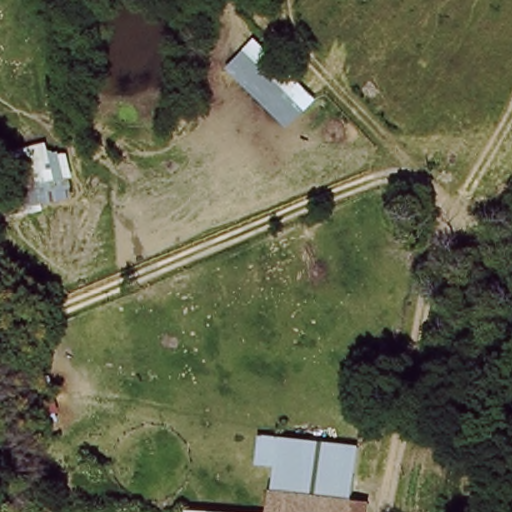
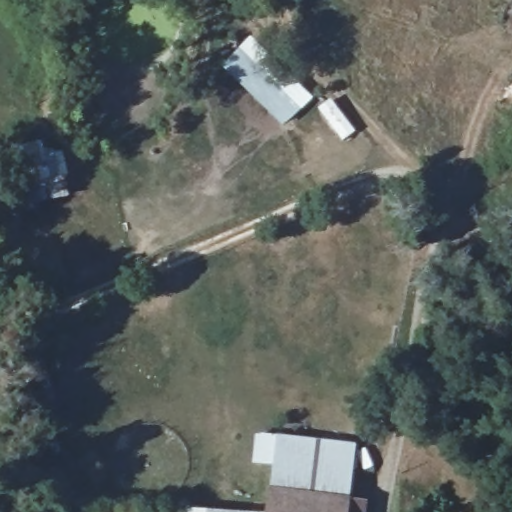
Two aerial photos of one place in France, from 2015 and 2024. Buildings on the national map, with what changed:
unchanged [(225,69),(254,39),(315,101),(287,129),(225,69)]
unchanged [(2,154),(46,144),(48,151),(57,154),(65,153),(71,179),(66,179),(71,198),(40,204),(41,213),(9,218),(2,154)]
unchanged [(343,507),(272,494),(278,460),(253,456),(258,427),(367,442),(355,509),(343,507)]
unchanged [(372,512),(269,512),(272,494),(343,507),(355,509),(372,512)]
unchanged [(183,508),(185,502),(202,505),(244,512),(183,512),(183,508)]

